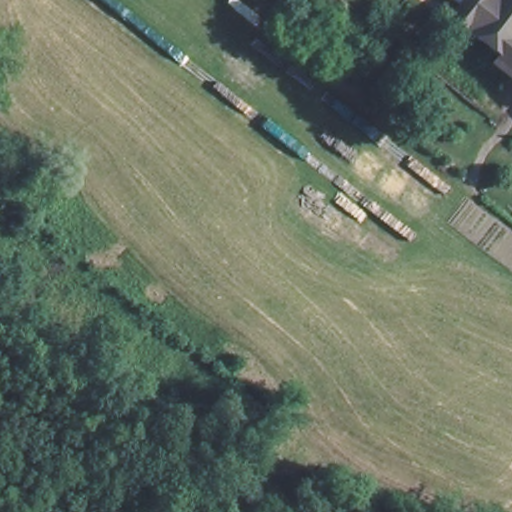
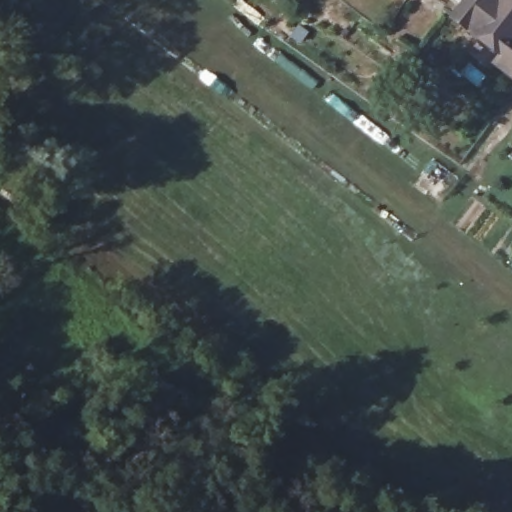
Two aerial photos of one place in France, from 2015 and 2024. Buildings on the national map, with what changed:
unchanged [(499,60),(505,52),(488,38),(454,11),(461,4),(464,0),(512,0),(512,69),(499,60)]

